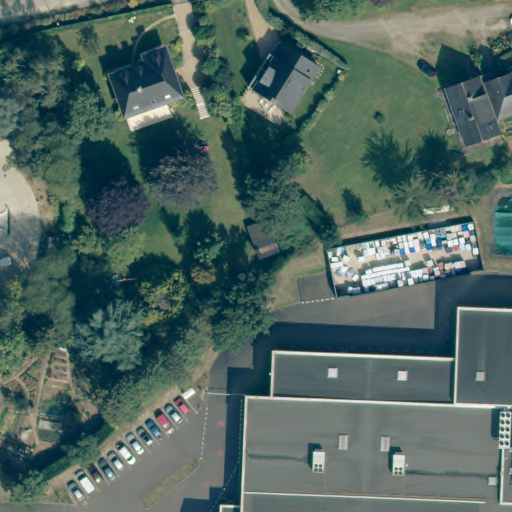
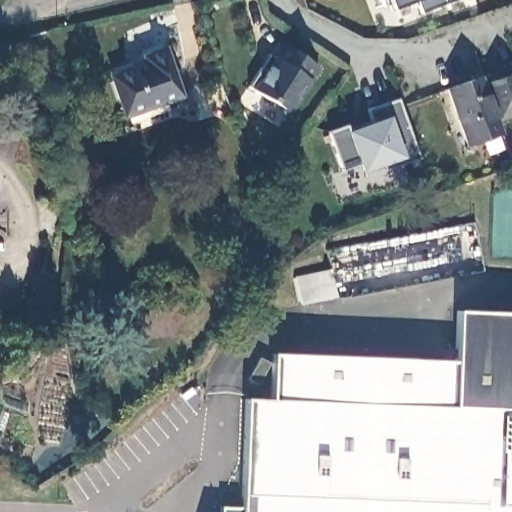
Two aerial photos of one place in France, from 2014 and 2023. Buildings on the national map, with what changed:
new [(392,10),(389,0),(415,0),(392,10)]
new [(422,12),(417,0),(454,0),(422,12)]
unchanged [(321,63),(290,117),(250,93),(280,37),(321,63)]
unchanged [(110,76),(145,64),(142,57),(162,50),(179,96),(124,116),(110,76)]
unchanged [(496,122),(501,134),(466,146),(446,90),(480,78),(482,85),(512,74),(512,117),(496,122)]
new [(345,126),(346,131),(371,122),(367,110),(397,100),(418,158),(384,169),(381,165),(360,172),(358,165),(342,169),(328,131),(345,126)]
unchanged [(271,234),(282,262),(263,269),(252,241),(271,234)]
new [(336,297),(299,304),(293,277),(330,269),(336,297)]
unchanged [(241,507),(245,398),(270,400),(272,354),(455,361),(457,311),(512,313),(512,512),(220,512),(220,506),(241,507)]

